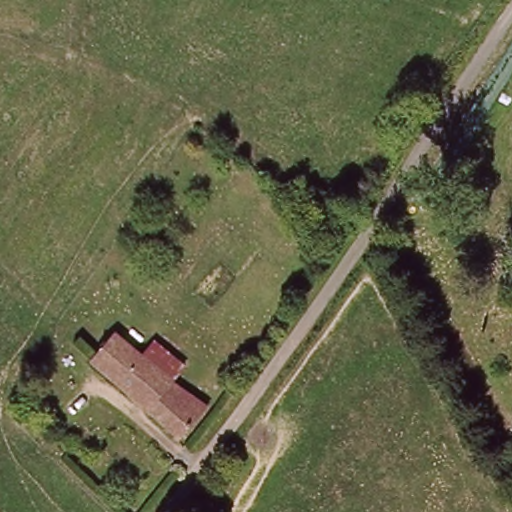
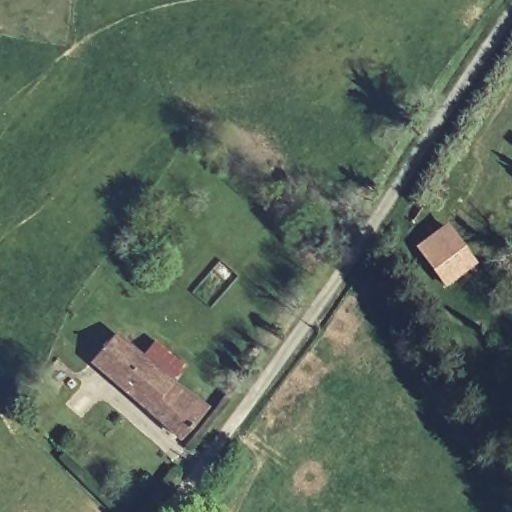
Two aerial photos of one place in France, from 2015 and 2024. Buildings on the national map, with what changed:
new [(447,291),(417,249),(450,226),(480,267),(447,291)]
unchanged [(185,438),(141,404),(93,370),(115,342),(140,358),(147,347),(152,342),(189,367),(185,372),(177,382),(210,406),(185,438)]

